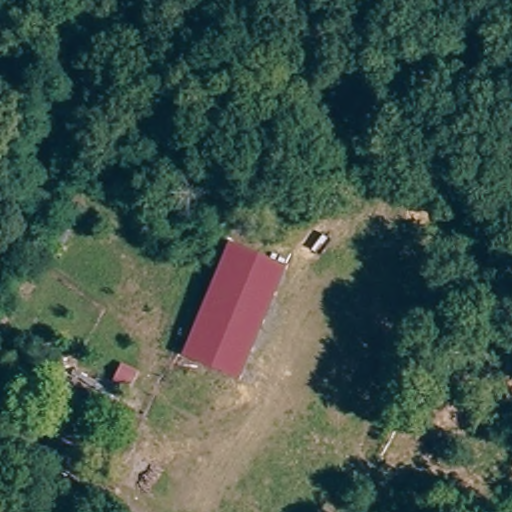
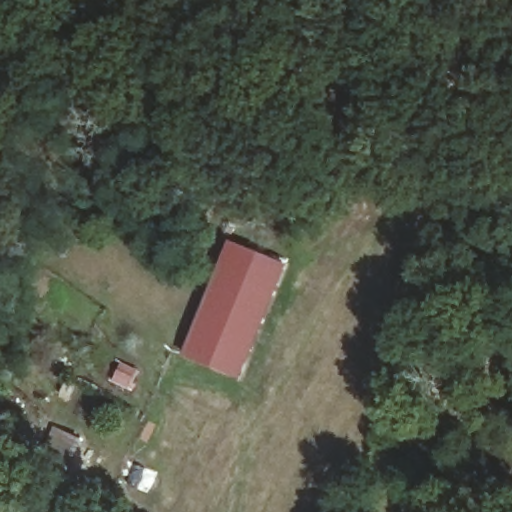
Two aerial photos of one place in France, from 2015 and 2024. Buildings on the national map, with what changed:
unchanged [(242,377),(183,353),(230,241),(288,263),(242,377)]

